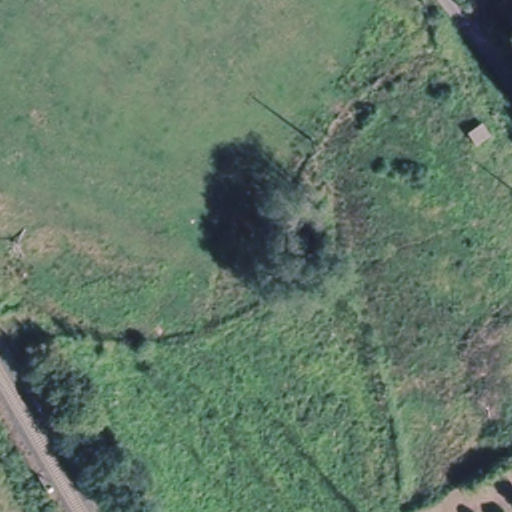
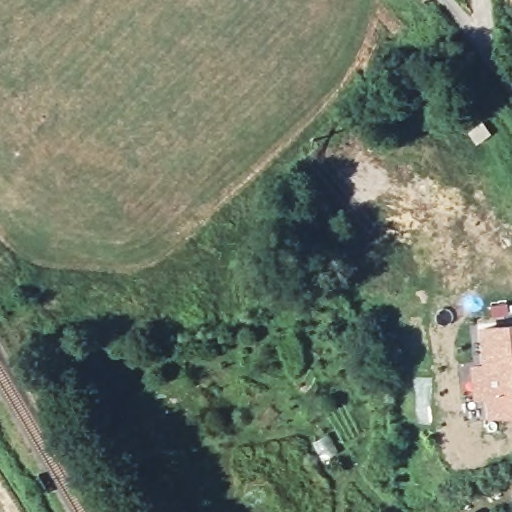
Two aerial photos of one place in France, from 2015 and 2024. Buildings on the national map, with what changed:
new [(512,412),(487,415),(485,397),(472,399),(469,366),(482,363),(478,326),(512,323),(512,412)]

